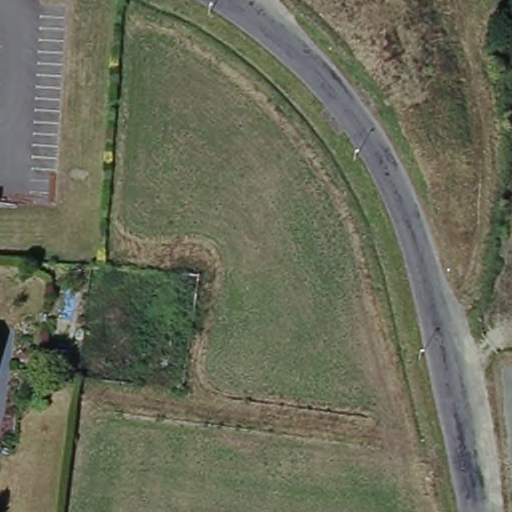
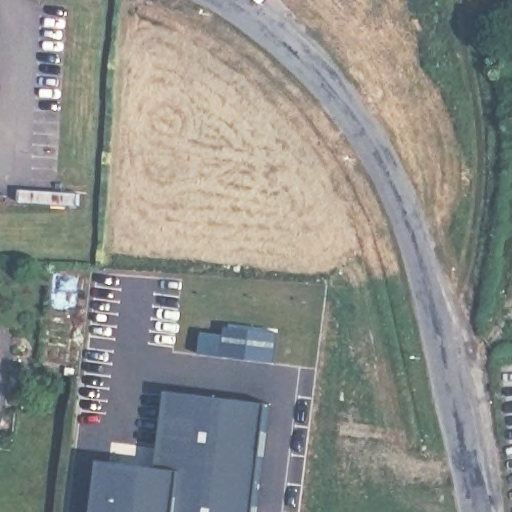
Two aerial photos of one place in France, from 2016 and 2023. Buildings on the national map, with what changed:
new [(263,384),(260,512),(94,512),(95,457),(158,457),(160,390),(263,384)]

